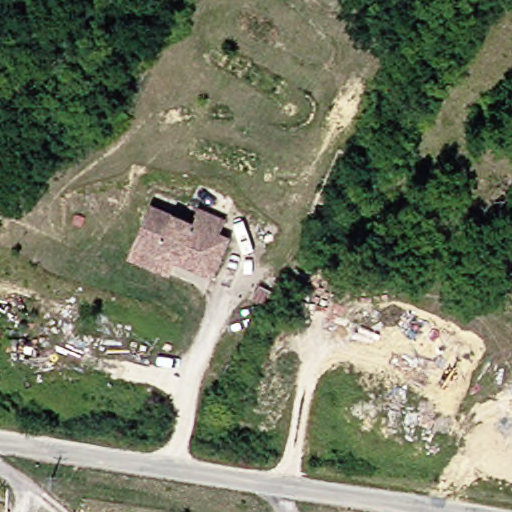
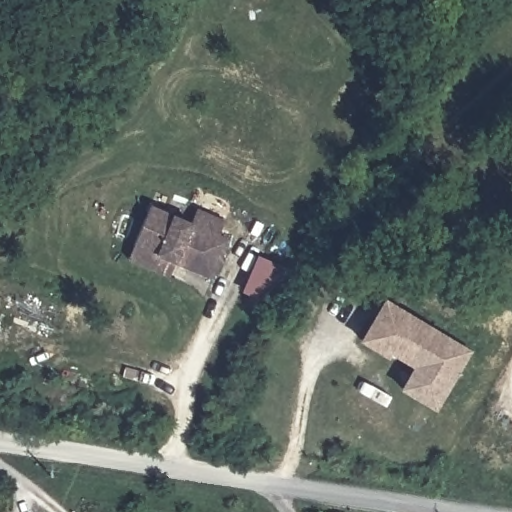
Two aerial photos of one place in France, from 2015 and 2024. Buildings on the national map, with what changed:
unchanged [(131,259),(137,245),(151,205),(192,220),(198,206),(227,217),(222,231),(231,234),(217,274),(179,260),(174,274),(131,259)]
new [(473,350),(436,411),(399,391),(412,368),(390,355),(389,359),(359,341),(386,298),(473,350)]

